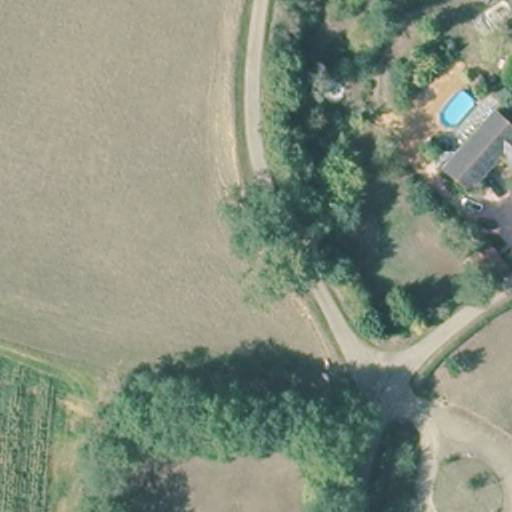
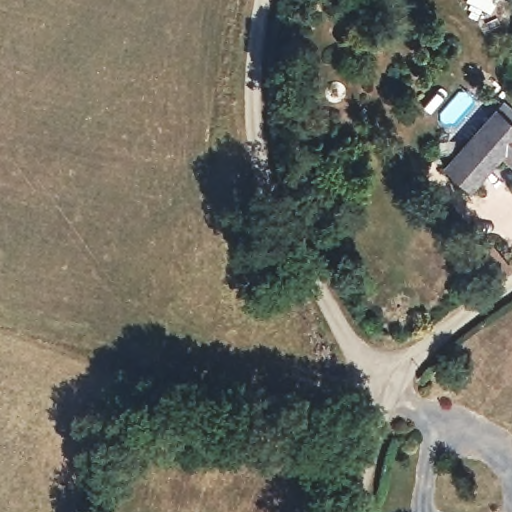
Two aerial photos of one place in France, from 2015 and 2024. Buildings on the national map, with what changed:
unchanged [(496,97),(510,114),(512,115),(512,167),(491,152),(459,187),(436,167),(485,108),(496,97)]
unchanged [(462,263),(476,249),(500,272),(484,285),(462,263)]

